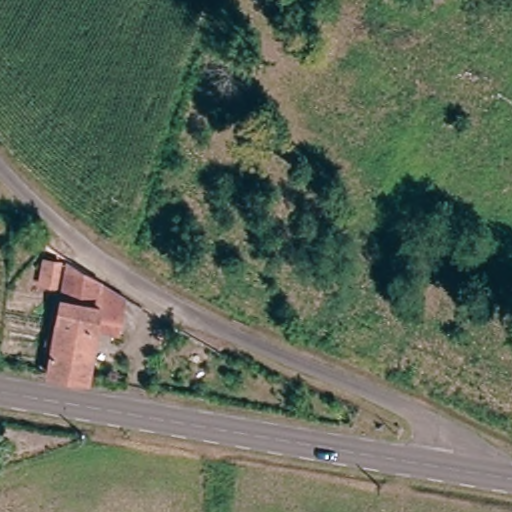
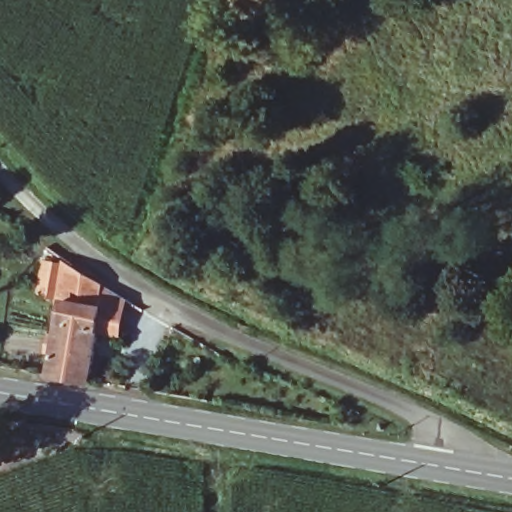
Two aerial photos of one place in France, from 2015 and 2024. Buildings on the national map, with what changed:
unchanged [(100,332),(93,381),(48,376),(58,298),(35,291),(42,257),(69,263),(128,295),(121,336),(100,332)]

